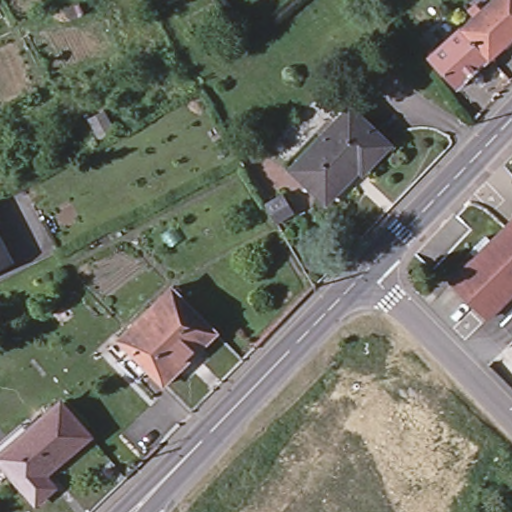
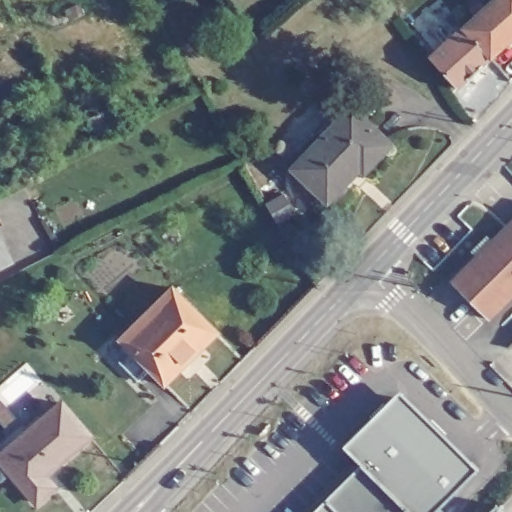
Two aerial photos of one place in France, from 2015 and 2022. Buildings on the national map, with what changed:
unchanged [(454,20),(458,16),(462,20),(484,0),(512,0),(512,31),(486,55),(458,24),(454,20)]
unchanged [(454,84),(425,54),(458,24),(486,55),(454,84)]
unchanged [(321,195),(288,162),(346,102),(384,139),(389,143),(364,167),(330,203),(321,195)]
unchanged [(284,195),(296,215),(279,223),(268,204),(284,195)]
unchanged [(448,280),(512,216),(512,287),(483,315),(448,280)]
unchanged [(0,267),(0,232),(14,260),(0,267)]
unchanged [(216,323),(164,375),(150,360),(139,371),(118,350),(129,340),(120,330),(172,278),(216,323)]
new [(313,512),(361,465),(343,445),(399,390),(477,468),(432,512),(313,512)]
unchanged [(58,397),(83,429),(48,458),(47,457),(37,465),(48,478),(30,492),(0,455),(0,445),(58,397)]
new [(487,512),(495,504),(503,512),(487,512)]

